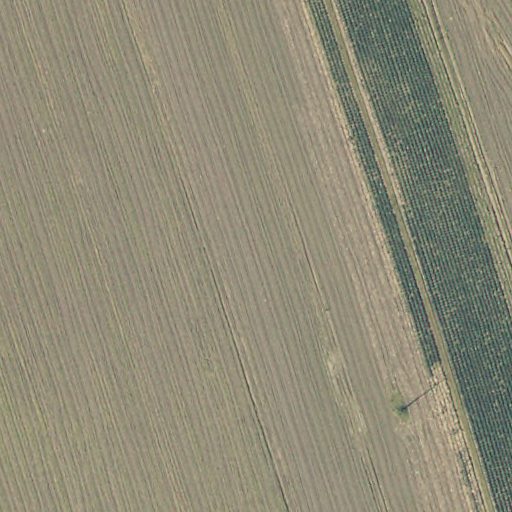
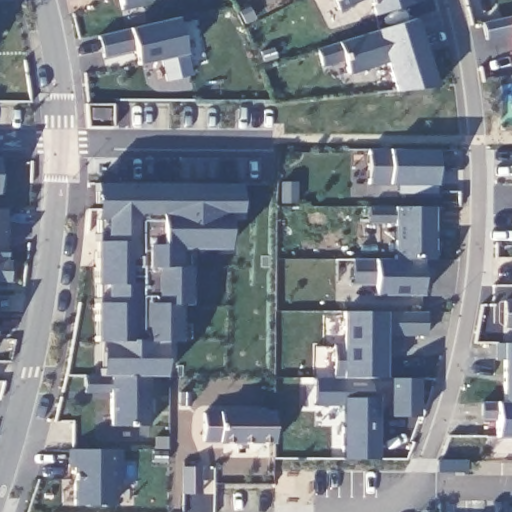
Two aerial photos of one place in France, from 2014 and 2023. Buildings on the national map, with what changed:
new [(119,0),(152,0),(122,8),(119,0)]
new [(333,0),(363,0),(338,12),(333,0)]
new [(413,4),(375,15),(370,0),(421,0),(421,1),(413,4)]
new [(488,42),(482,22),(509,15),(512,15),(512,40),(488,42)]
new [(188,56),(192,75),(166,80),(164,60),(138,65),(135,54),(103,59),(97,35),(130,30),(176,17),(188,56)]
new [(437,86),(394,91),(386,65),(349,75),(346,63),(322,67),(316,50),(339,42),(378,30),(417,17),(437,86)]
new [(437,186),(369,185),(368,150),(390,150),(436,151),(437,186)]
new [(0,195),(0,160),(2,160),(1,195),(0,195)]
new [(239,220),(228,221),(227,250),(189,250),(191,267),(190,306),(181,306),(180,325),(190,324),(189,340),(179,342),(169,343),(166,345),(165,377),(151,377),(149,426),(110,426),(109,393),(83,393),(83,377),(91,377),(100,376),(100,358),(104,341),(96,343),(95,303),(103,302),(103,285),(96,285),(96,242),(108,241),(106,221),(95,221),(95,184),(240,184),(239,220)]
new [(436,260),(432,275),(421,278),(421,295),(372,295),(372,286),(352,285),(352,259),(374,258),(396,259),(394,225),(369,225),(369,206),(396,206),(435,207),(436,260)]
new [(12,260),(12,283),(0,283),(0,209),(6,209),(8,260),(12,260)]
new [(504,327),(504,300),(512,301),(512,327),(504,327)]
new [(428,334),(385,333),(385,378),(421,378),(422,416),(388,416),(388,408),(378,407),(379,460),(338,460),(339,406),(317,405),(317,377),(345,377),(345,312),(427,313),(428,334)]
new [(483,401),(509,402),(509,363),(501,363),(502,345),(512,346),(512,437),(497,437),(497,420),(482,419),(483,401)]
new [(273,443),(203,444),(202,411),(220,411),(274,411),(273,443)]
new [(123,486),(115,486),(115,505),(74,505),(73,450),(114,450),(122,450),(123,486)]

